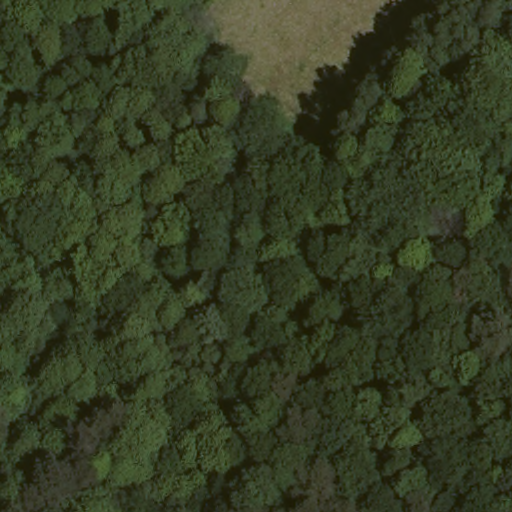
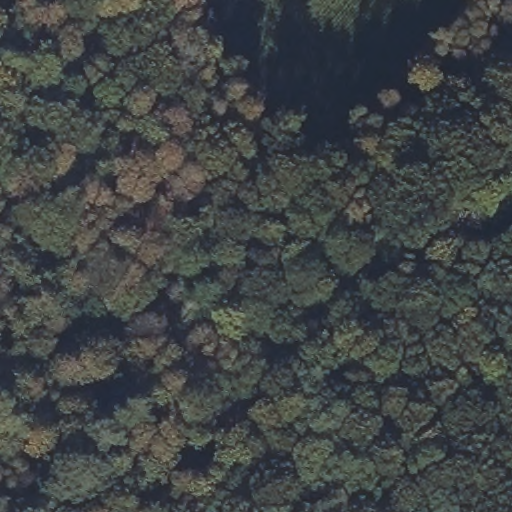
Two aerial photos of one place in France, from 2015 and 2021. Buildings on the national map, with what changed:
[]

